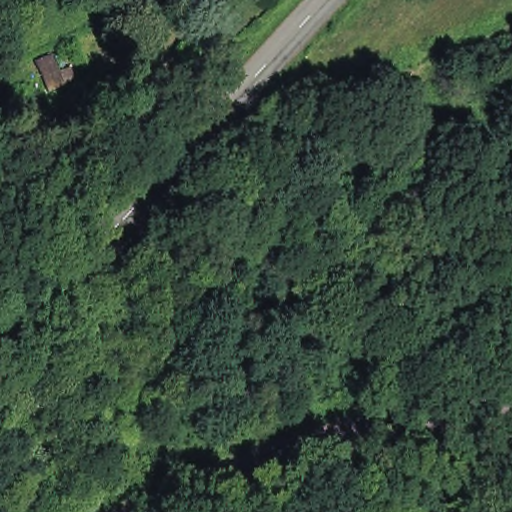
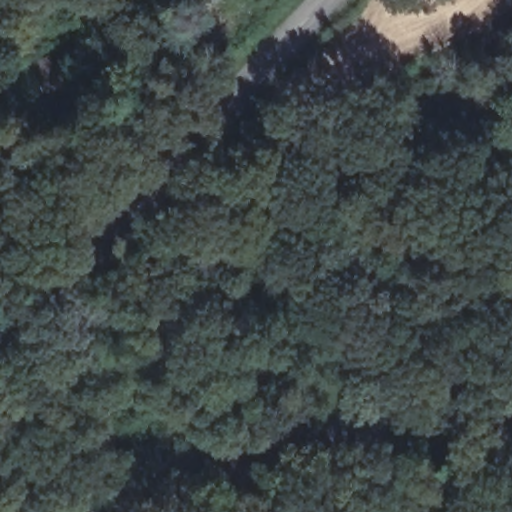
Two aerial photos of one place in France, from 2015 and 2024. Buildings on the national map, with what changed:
unchanged [(50,55),(63,86),(47,92),(35,62),(50,55)]

